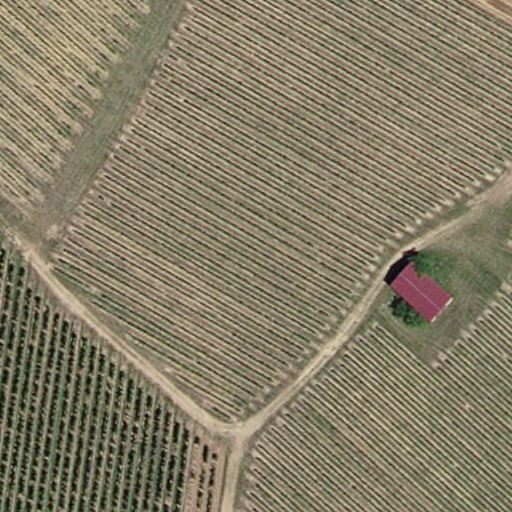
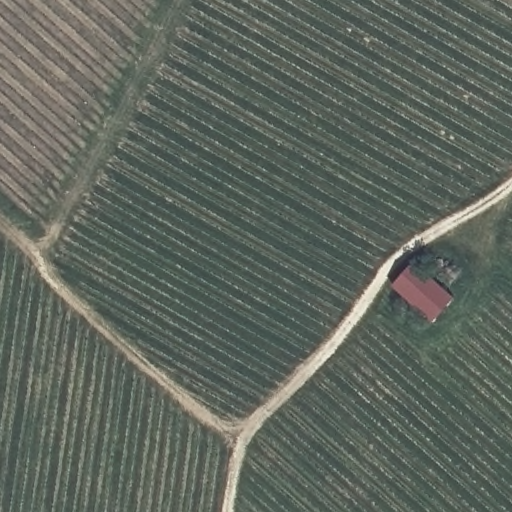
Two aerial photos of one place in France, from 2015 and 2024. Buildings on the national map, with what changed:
unchanged [(405,262),(447,296),(427,321),(385,286),(405,262)]

